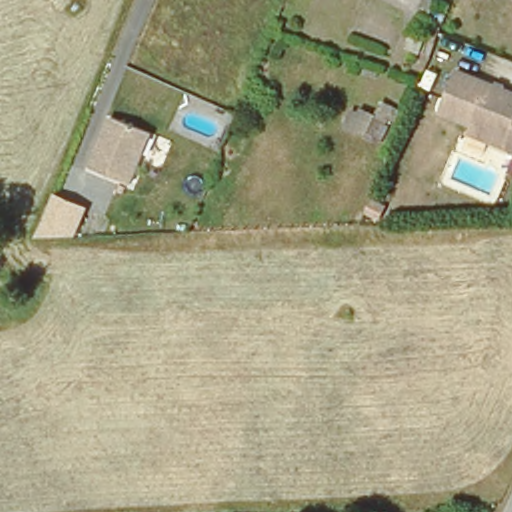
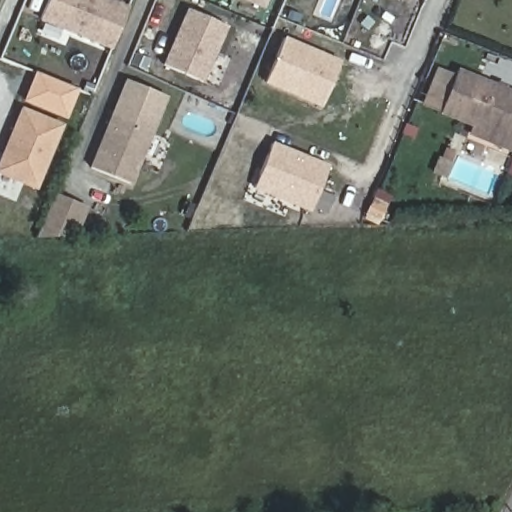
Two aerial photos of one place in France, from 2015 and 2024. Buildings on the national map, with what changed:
new [(45,0),(103,0),(120,7),(106,42),(39,15),(45,0)]
new [(258,5),(248,0),(260,0),(258,5)]
new [(184,9),(222,24),(199,79),(162,64),(184,9)]
new [(282,37),(339,61),(319,107),(262,84),(282,37)]
new [(31,71),(77,90),(64,122),(17,103),(31,71)]
unchanged [(456,75),(512,96),(512,149),(470,133),(470,126),(440,114),(456,75)]
new [(122,79),(166,97),(152,135),(147,132),(108,117),(122,79)]
unchanged [(394,125),(388,122),(379,144),(342,127),(349,106),(373,114),(380,100),(400,108),(394,125)]
new [(65,127),(38,190),(0,173),(0,143),(15,107),(65,127)]
unchanged [(126,184),(87,168),(108,117),(147,132),(126,184)]
new [(328,166),(310,212),(253,189),(272,142),(328,166)]
unchanged [(79,237),(34,239),(55,194),(91,207),(79,237)]

